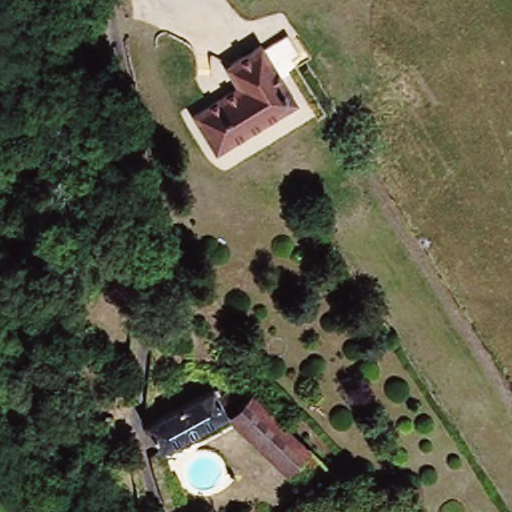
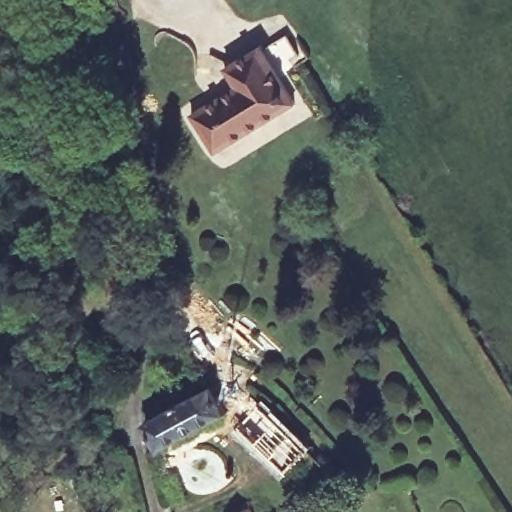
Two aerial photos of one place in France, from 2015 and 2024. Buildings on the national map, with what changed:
unchanged [(294,102),(213,154),(187,117),(231,87),(219,72),(246,51),(256,46),(266,60),(294,102)]
unchanged [(132,259),(131,293),(106,292),(107,260),(132,259)]
unchanged [(94,338),(84,322),(96,315),(105,332),(94,338)]
unchanged [(226,411),(158,440),(148,413),(219,385),(226,411)]
unchanged [(248,401),(303,449),(285,467),(231,417),(248,401)]
unchanged [(268,496),(276,512),(244,512),(242,506),(268,496)]

